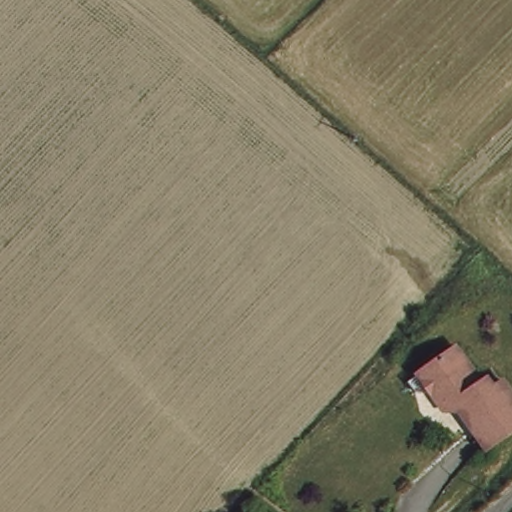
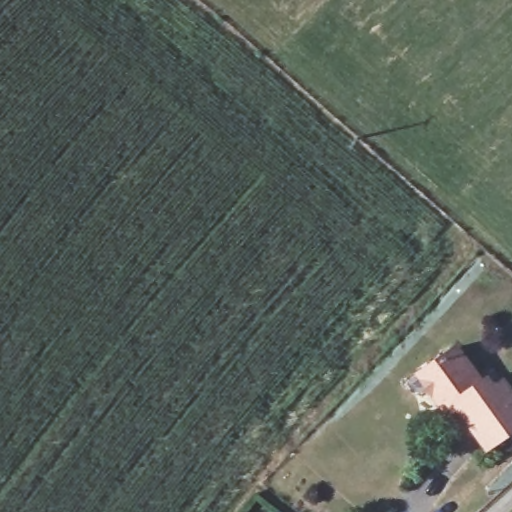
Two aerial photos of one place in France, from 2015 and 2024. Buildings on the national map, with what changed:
unchanged [(481,384),(487,381),(493,388),(504,382),(512,393),(512,430),(488,447),(462,412),(465,409),(459,401),(444,411),(419,374),(457,348),(481,384)]

